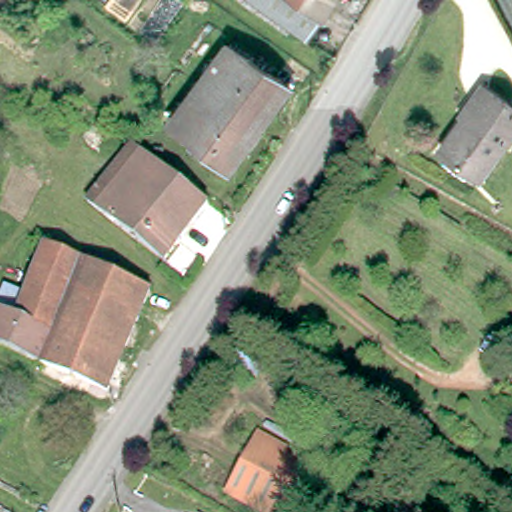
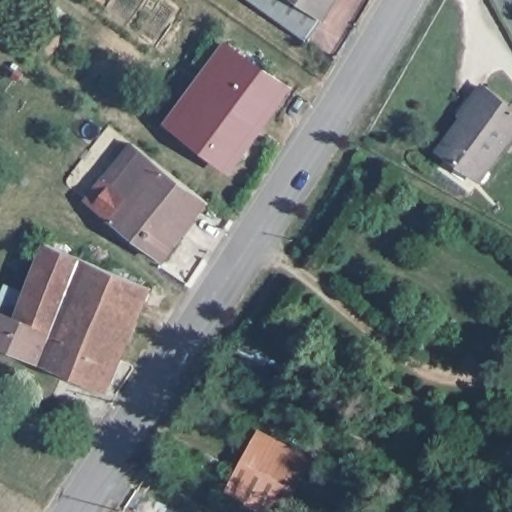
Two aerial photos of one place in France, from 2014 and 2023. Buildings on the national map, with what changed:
unchanged [(253,5),(256,0),(298,0),(342,0),(328,22),(312,47),(253,5)]
unchanged [(236,170),(176,123),(234,45),(296,89),(236,170)]
unchanged [(476,110),(473,107),(486,89),(512,108),(512,138),(482,180),(445,152),(476,110)]
unchanged [(215,202),(171,260),(94,200),(138,142),(215,202)]
unchanged [(46,242),(81,258),(45,361),(0,343),(0,310),(5,296),(24,303),(46,242)]
unchanged [(110,390),(45,361),(81,258),(151,287),(110,390)]
unchanged [(272,350),(258,371),(233,355),(248,333),(272,350)]
unchanged [(284,512),(263,512),(226,491),(255,438),(306,466),(284,512)]

